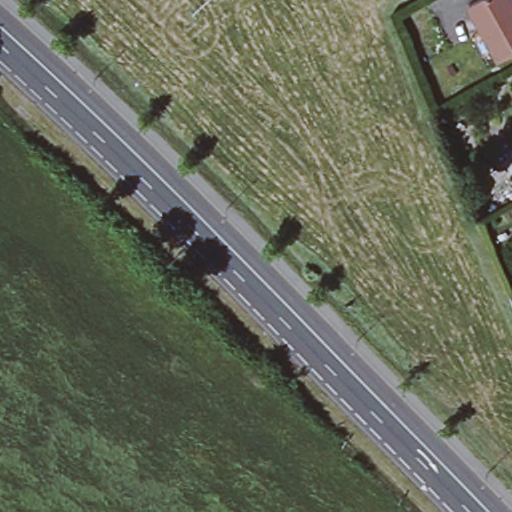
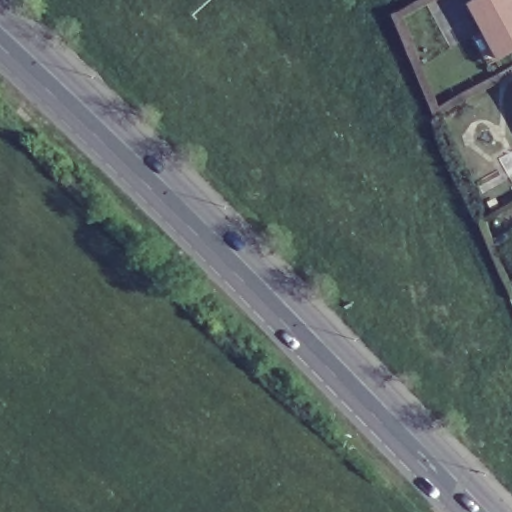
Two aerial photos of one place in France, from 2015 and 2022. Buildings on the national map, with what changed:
unchanged [(474,37),(486,31),(471,7),(483,0),(512,0),(512,54),(503,59),(491,66),(474,37)]

